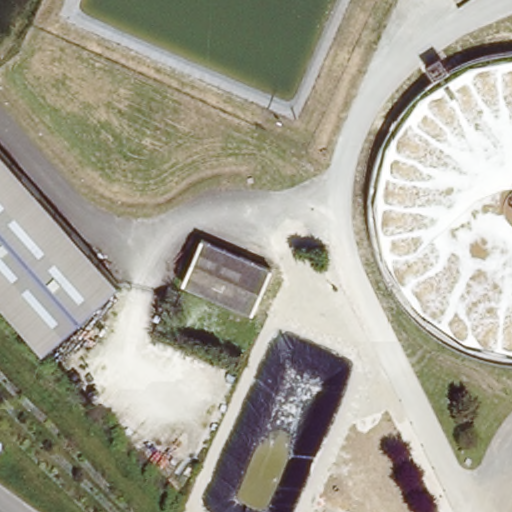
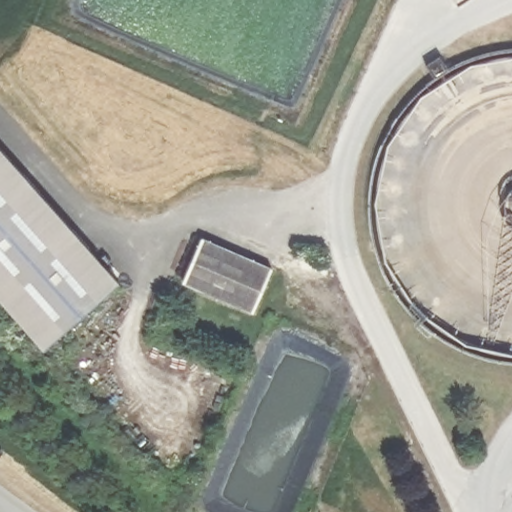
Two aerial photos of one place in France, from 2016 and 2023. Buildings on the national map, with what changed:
unchanged [(44,348),(0,299),(0,148),(118,282),(44,348)]
unchanged [(275,269),(255,314),(185,280),(205,237),(275,269)]

